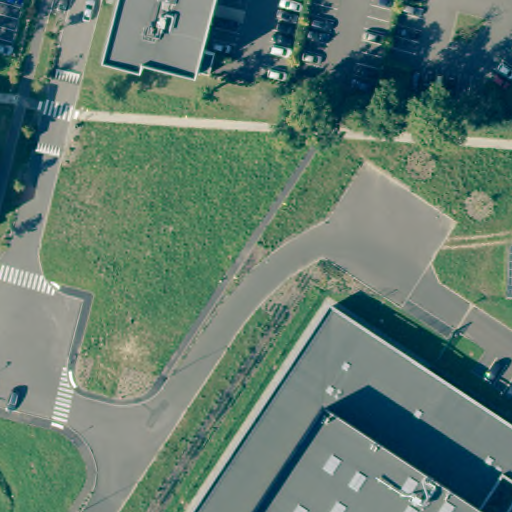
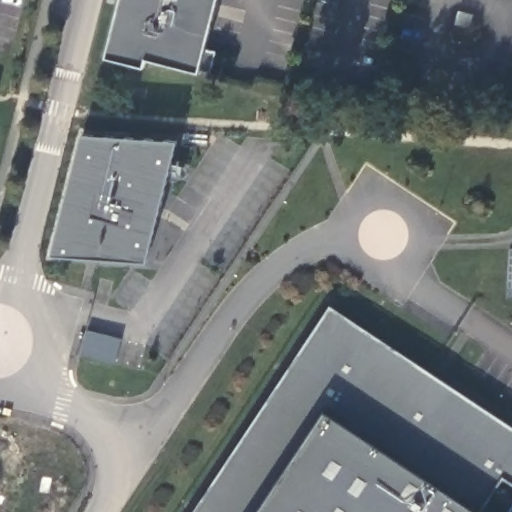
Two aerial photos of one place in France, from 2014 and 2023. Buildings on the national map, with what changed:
unchanged [(216,52),(210,73),(200,71),(200,73),(146,59),(145,67),(105,57),(120,0),(218,0),(205,49),(216,52)]
new [(177,141),(147,262),(52,258),(84,137),(177,141)]
unchanged [(512,247),(512,298),(502,297),(505,247),(512,247)]
unchanged [(330,309),(512,430),(512,512),(195,512),(330,309)]
new [(122,338),(116,365),(81,358),(88,330),(122,338)]

